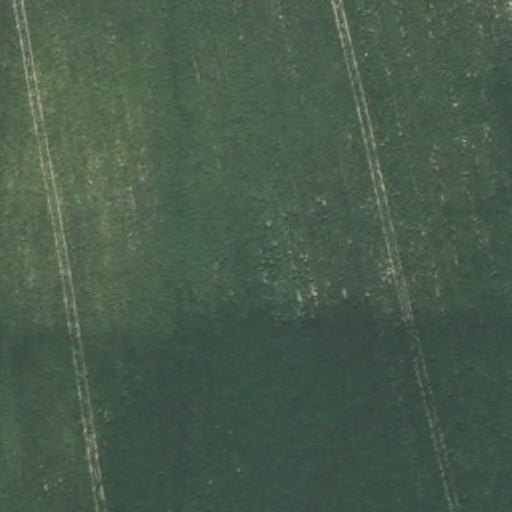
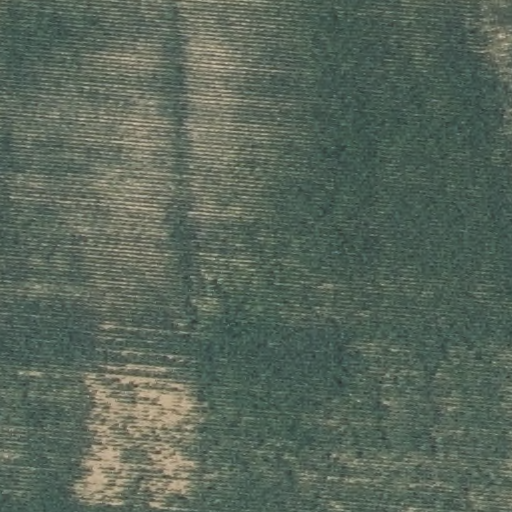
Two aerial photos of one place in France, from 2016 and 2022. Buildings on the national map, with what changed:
[]

